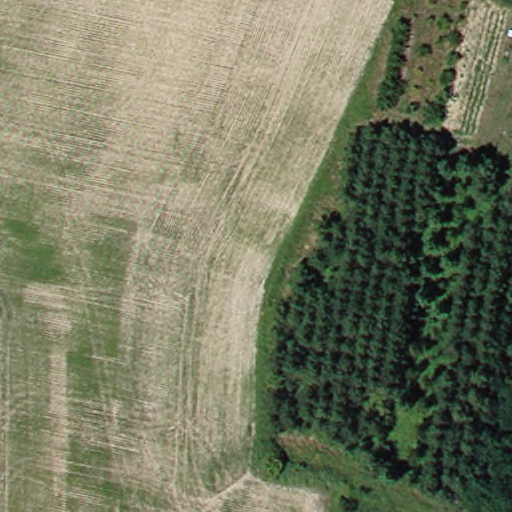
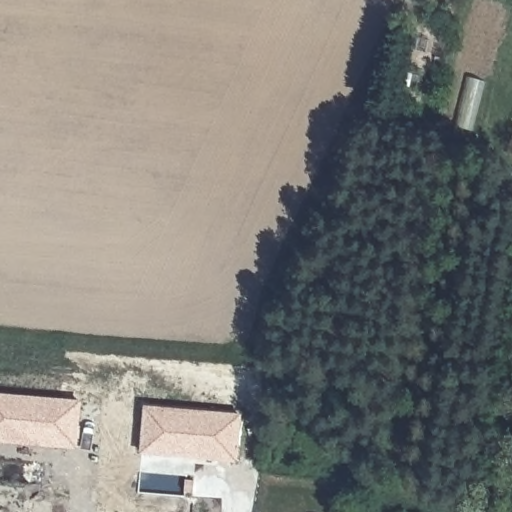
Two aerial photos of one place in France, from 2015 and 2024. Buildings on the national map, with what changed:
new [(0,441),(0,394),(79,404),(75,447),(0,441)]
new [(237,461),(141,453),(143,411),(240,420),(237,461)]

